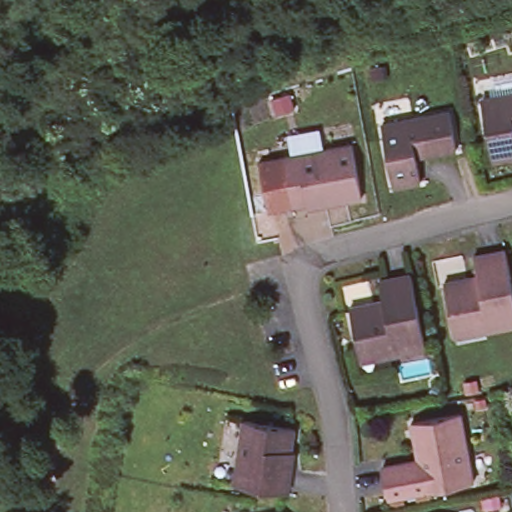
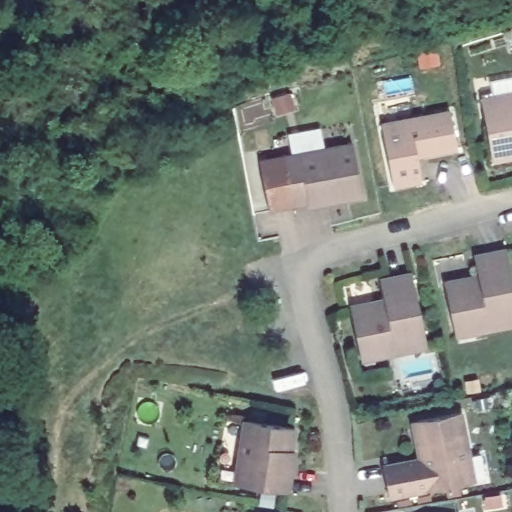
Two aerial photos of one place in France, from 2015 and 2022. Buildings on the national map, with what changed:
unchanged [(478,97),(512,90),(512,155),(490,159),(478,97)]
unchanged [(380,126),(447,114),(454,151),(415,158),(420,184),(392,189),(380,126)]
unchanged [(304,201),(292,204),(283,154),(350,141),(360,194),(334,200),(306,205),(304,201)]
unchanged [(452,326),(442,280),(476,273),(472,254),(502,247),(512,289),(512,322),(485,328),(455,335),(452,326)]
unchanged [(359,350),(350,303),(383,297),(379,276),(410,271),(425,345),(390,353),(360,359),(359,350)]
unchanged [(462,411),(477,479),(390,495),(385,464),(420,457),(414,420),(462,411)]
unchanged [(302,465),(297,491),(244,481),(253,420),(303,427),(300,450),(305,451),(302,465)]

